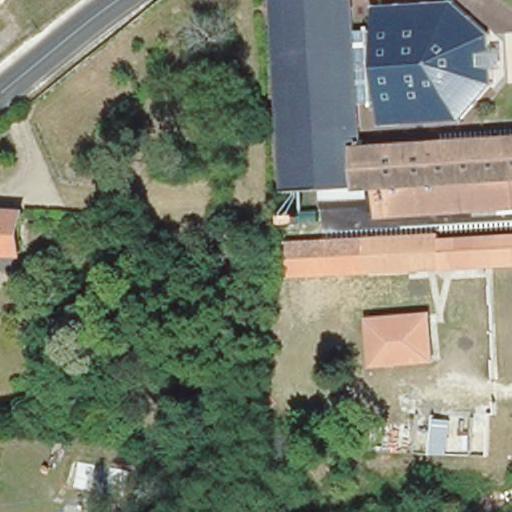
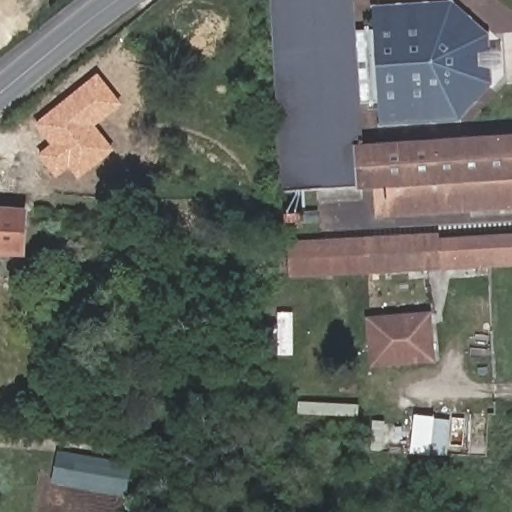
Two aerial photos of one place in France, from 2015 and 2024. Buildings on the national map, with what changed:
unchanged [(353,16),(368,15),(366,0),(450,0),(478,21),(482,39),(470,39),(470,57),(483,57),(485,73),(452,117),(376,121),(374,101),(359,102),(362,143),(512,133),(512,204),(374,213),(373,201),(355,202),(354,184),(277,189),(265,0),(352,0),(353,16)]
new [(50,145),(34,125),(98,74),(122,105),(95,126),(114,150),(78,180),(69,168),(56,178),(38,156),(50,145)]
unchanged [(22,252),(0,251),(0,209),(25,211),(22,252)]
unchanged [(370,232),(439,229),(439,235),(512,231),(512,260),(371,267),(370,232)]
unchanged [(289,237),(358,233),(360,264),(291,269),(289,237)]
unchanged [(436,362),(374,367),(369,317),(432,311),(436,362)]
new [(413,415),(450,418),(447,457),(409,453),(413,415)]
new [(129,465),(126,499),(53,485),(59,452),(129,465)]

